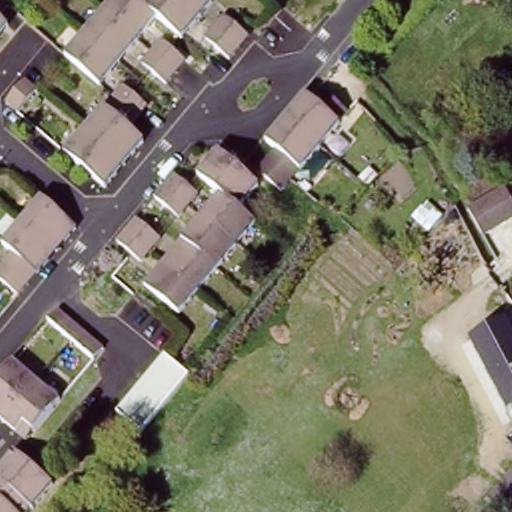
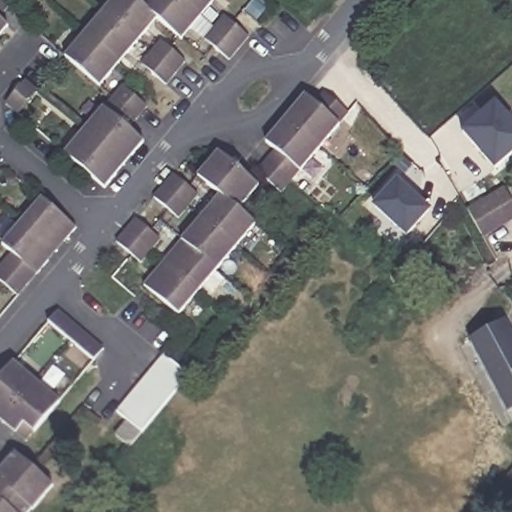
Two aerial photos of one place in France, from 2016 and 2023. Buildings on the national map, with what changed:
unchanged [(144,0),(213,0),(179,39),(156,20),(99,86),(66,56),(115,0),(133,0),(139,5),(144,0)]
unchanged [(0,17),(0,1),(8,8),(0,17)]
unchanged [(224,16),(248,37),(228,60),(203,40),(224,16)]
unchanged [(0,20),(8,27),(0,37),(0,20)]
unchanged [(161,42),(184,62),(165,85),(141,64),(161,42)]
unchanged [(5,105),(25,81),(37,91),(17,115),(5,105)]
unchanged [(146,109),(128,130),(143,142),(103,189),(64,154),(123,88),(146,109)]
unchanged [(257,179),(276,155),(266,145),(304,101),(314,110),(324,99),(334,107),(348,119),(281,198),(266,187),(257,179)]
new [(494,168),(461,131),(494,101),(512,121),(512,153),(494,168)]
unchanged [(253,229),(193,300),(176,319),(146,289),(218,203),(196,185),(218,157),(259,192),(238,217),(240,219),(253,229)]
unchanged [(178,217),(154,197),(172,175),(196,196),(178,217)]
new [(405,234),(373,205),(396,180),(428,209),(405,234)]
unchanged [(484,201),(500,187),(512,206),(512,219),(481,241),(464,214),(484,201)]
unchanged [(0,282),(0,269),(10,257),(13,254),(3,245),(41,200),(74,228),(33,277),(17,297),(0,282)]
unchanged [(158,240),(140,263),(115,242),(134,220),(158,240)]
unchanged [(103,354),(92,366),(67,345),(48,328),(58,315),(78,333),(103,354)]
unchanged [(510,415),(473,341),(506,325),(512,338),(512,413),(510,415)]
unchanged [(138,436),(113,416),(163,359),(186,378),(138,436)]
unchanged [(0,382),(16,363),(63,402),(35,436),(31,441),(0,415),(0,382)]
unchanged [(32,512),(0,512),(0,476),(16,457),(51,489),(32,512)]
unchanged [(504,512),(490,500),(512,474),(512,512),(504,512)]

